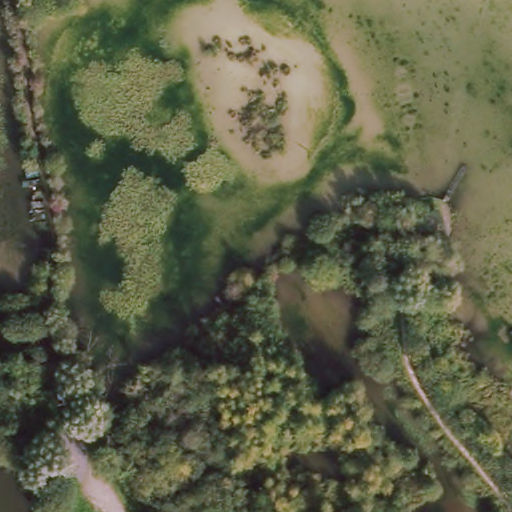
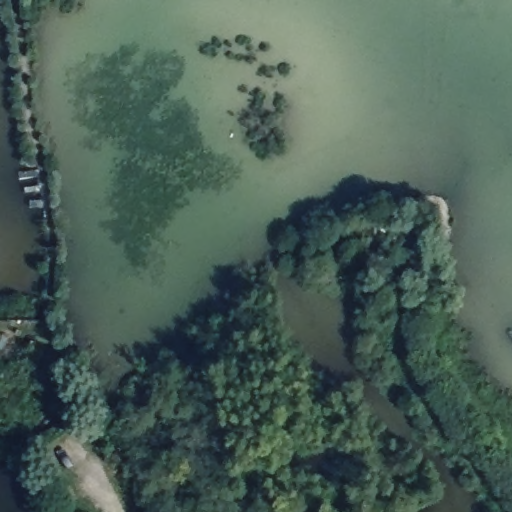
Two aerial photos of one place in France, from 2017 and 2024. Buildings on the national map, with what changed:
unchanged [(362,217),(380,233),(375,237),(338,274),(320,257),(348,229),(362,217)]

